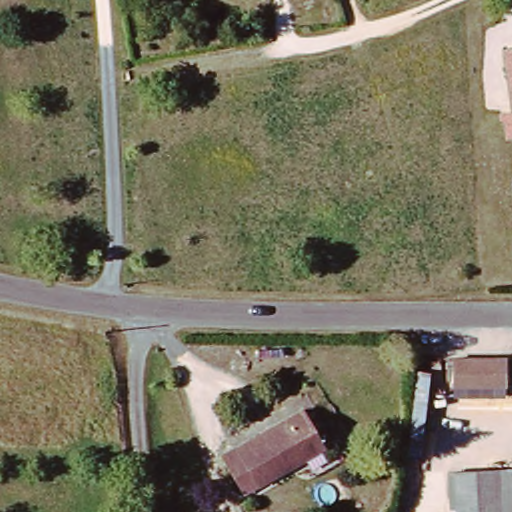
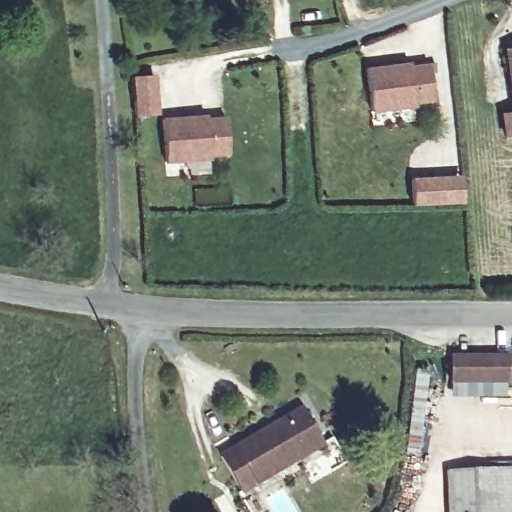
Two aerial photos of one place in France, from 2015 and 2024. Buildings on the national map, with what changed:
unchanged [(512,79),(511,79),(508,49),(512,48),(512,79)]
new [(366,67),(430,60),(435,105),(370,112),(366,67)]
unchanged [(503,112),(512,111),(512,136),(505,136),(503,112)]
new [(225,114),(228,157),(166,164),(162,117),(225,114)]
new [(461,176),(463,204),(412,206),(410,179),(461,176)]
unchanged [(455,361),(511,361),(512,387),(456,387),(455,361)]
unchanged [(226,460),(310,409),(331,445),(248,495),(226,460)]
unchanged [(512,471),(512,512),(452,512),(451,473),(512,471)]

